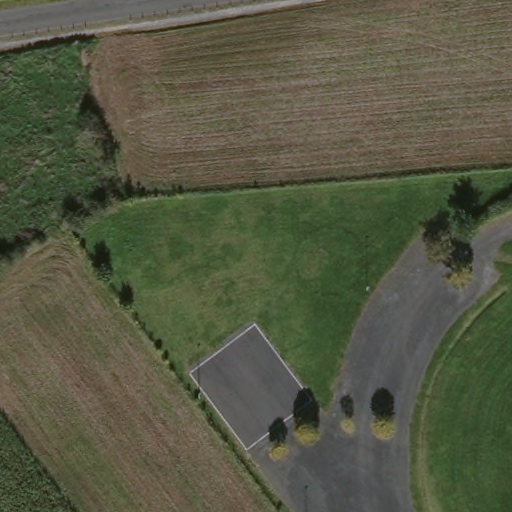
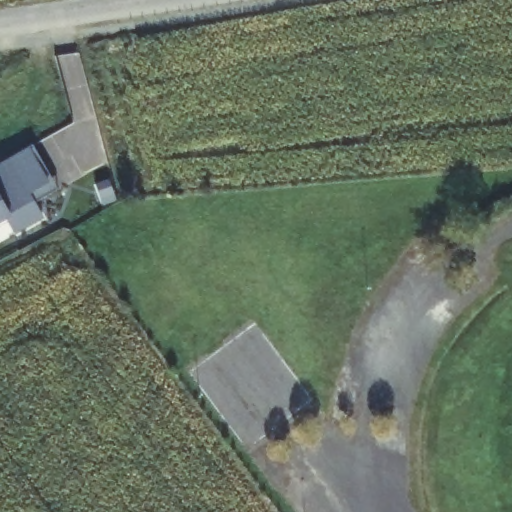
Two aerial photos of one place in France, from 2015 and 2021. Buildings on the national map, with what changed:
new [(42,138),(67,182),(44,196),(51,210),(27,224),(16,204),(0,213),(0,162),(37,141),(42,138)]

